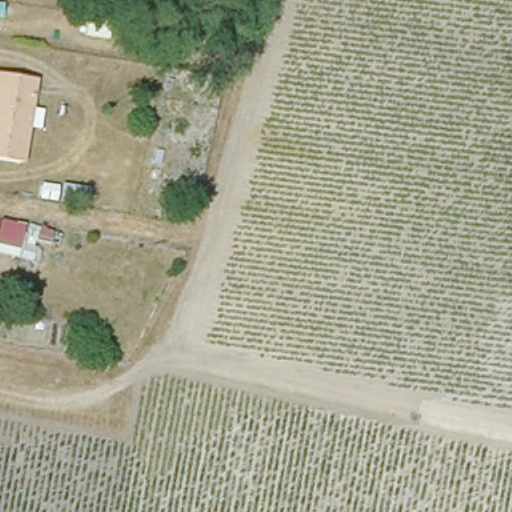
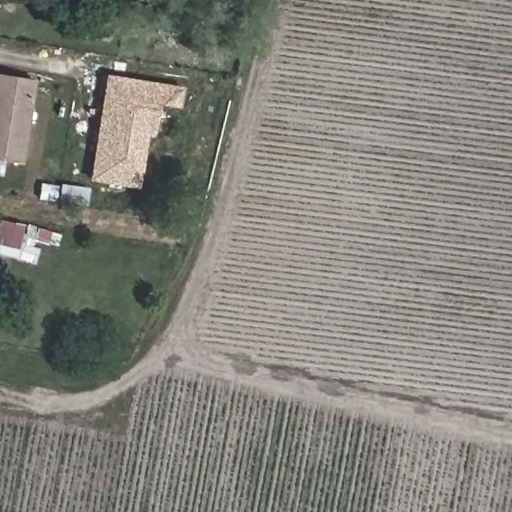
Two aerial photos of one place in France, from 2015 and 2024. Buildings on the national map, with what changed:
unchanged [(30,79),(17,161),(0,159),(0,73),(30,79)]
new [(153,136),(147,135),(140,187),(90,180),(106,74),(184,87),(181,112),(157,109),(153,136)]
new [(52,232),(47,245),(32,240),(29,261),(0,252),(0,220),(52,232)]

